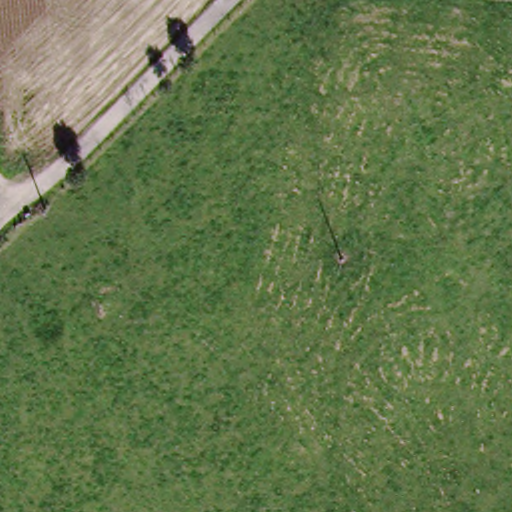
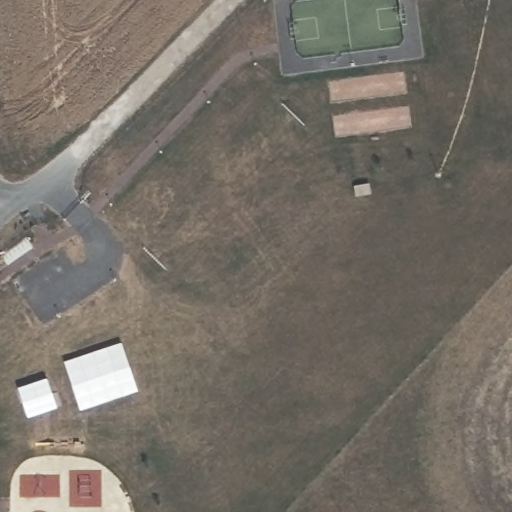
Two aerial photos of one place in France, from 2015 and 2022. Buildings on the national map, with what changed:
new [(64,362),(120,344),(137,391),(80,410),(64,362)]
new [(49,379),(56,409),(25,418),(18,389),(49,379)]

